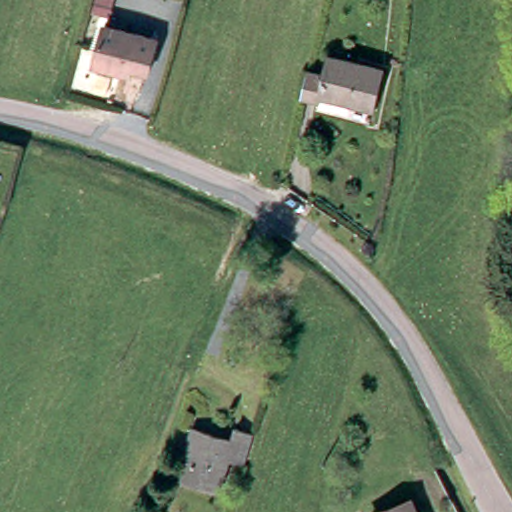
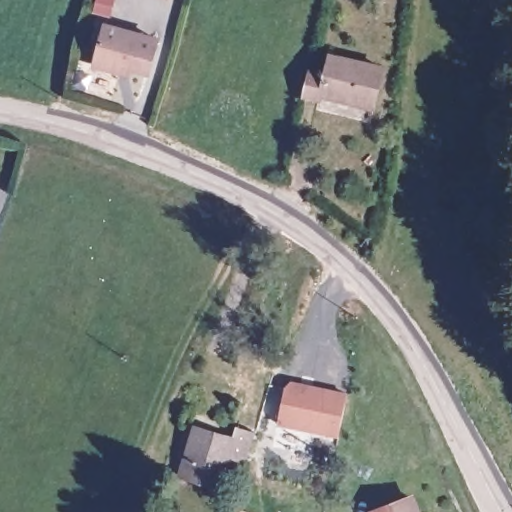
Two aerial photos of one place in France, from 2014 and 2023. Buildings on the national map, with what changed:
unchanged [(123,74),(120,73),(90,65),(102,24),(132,33),(155,40),(145,74),(128,70),(126,75),(123,74)]
unchanged [(315,105),(296,102),(302,73),(318,76),(322,58),(378,71),(370,111),(316,98),(315,105)]
new [(347,393),(338,436),(277,423),(285,387),(292,380),(347,393)]
unchanged [(241,456),(223,450),(214,481),(175,469),(190,419),(229,431),(233,418),(251,424),(241,456)]
unchanged [(413,508),(418,506),(421,512),(368,512),(366,506),(408,492),(413,508)]

